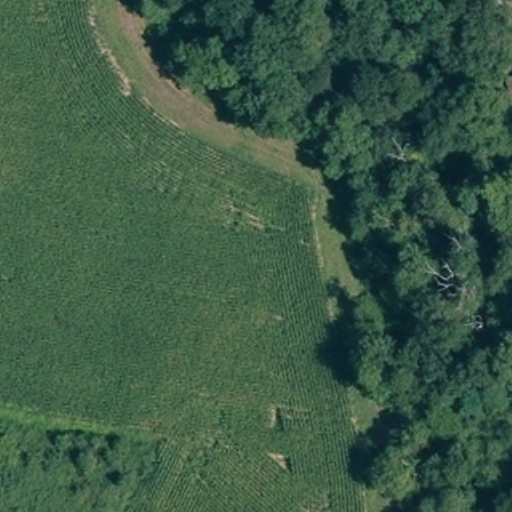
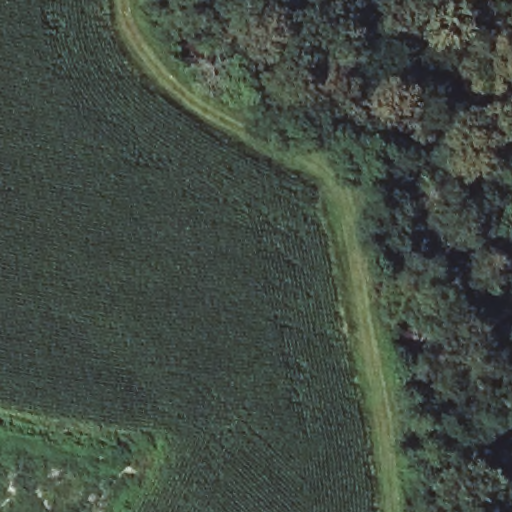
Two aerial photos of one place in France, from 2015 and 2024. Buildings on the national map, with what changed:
unchanged [(504,0),(512,0),(512,36),(491,24),(504,0)]
unchanged [(512,65),(512,86),(508,65),(512,65)]

